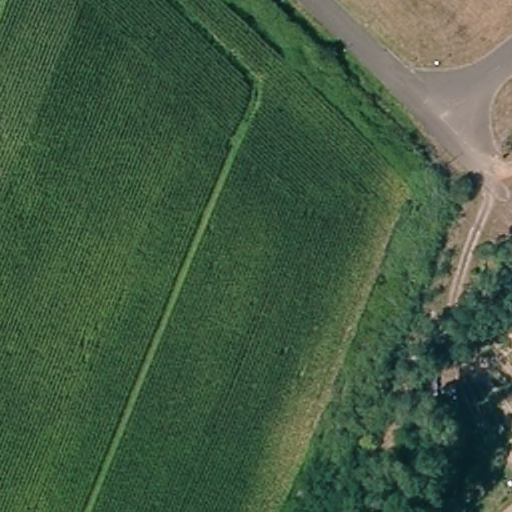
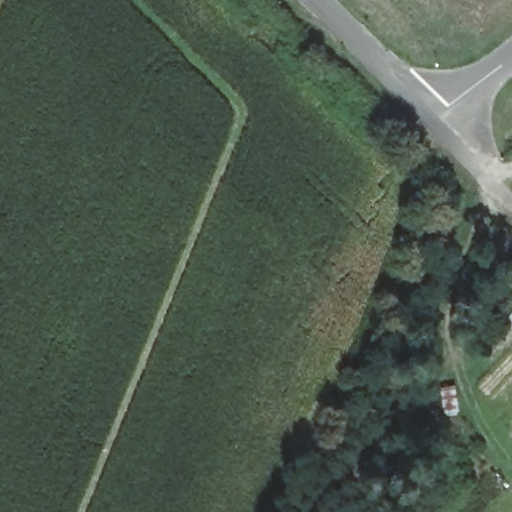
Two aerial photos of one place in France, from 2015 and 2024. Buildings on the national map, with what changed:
[]

